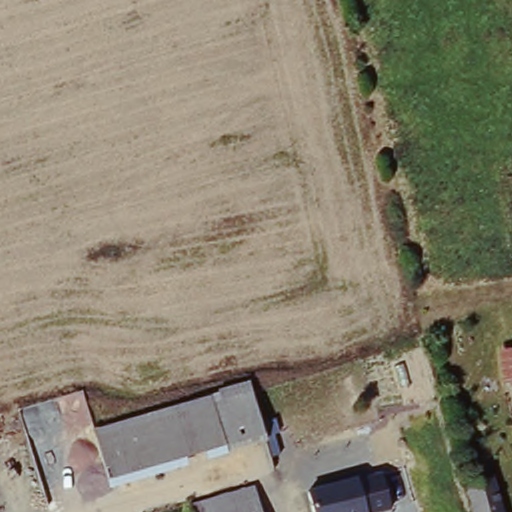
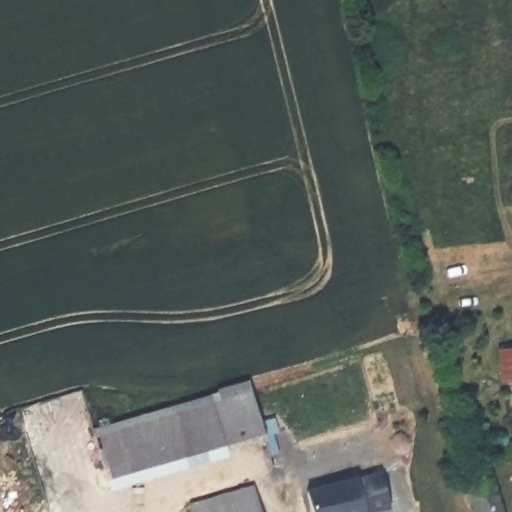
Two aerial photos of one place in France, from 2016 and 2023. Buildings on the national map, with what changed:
unchanged [(512,387),(500,389),(496,354),(512,352),(512,387)]
unchanged [(91,429),(247,385),(270,442),(110,493),(91,429)]
unchanged [(363,512),(313,512),(305,481),(352,468),(363,512)]
unchanged [(493,477),(503,512),(479,512),(470,484),(493,477)]
unchanged [(256,492),(261,512),(193,512),(192,509),(256,492)]

